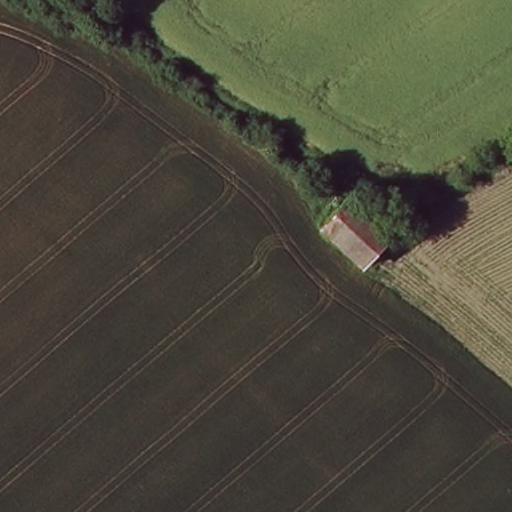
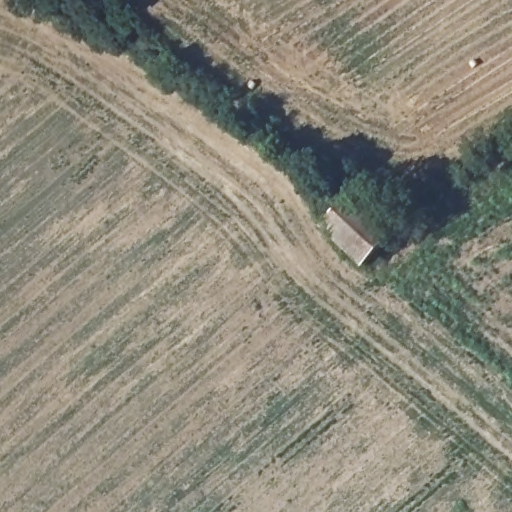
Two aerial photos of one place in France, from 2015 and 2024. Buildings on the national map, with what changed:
unchanged [(361,266),(322,228),(347,203),(385,240),(361,266)]

